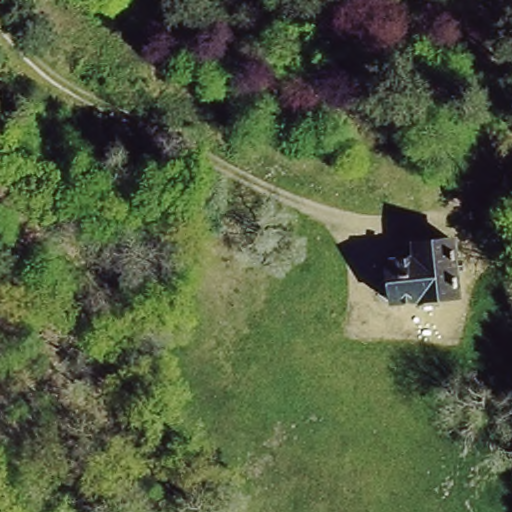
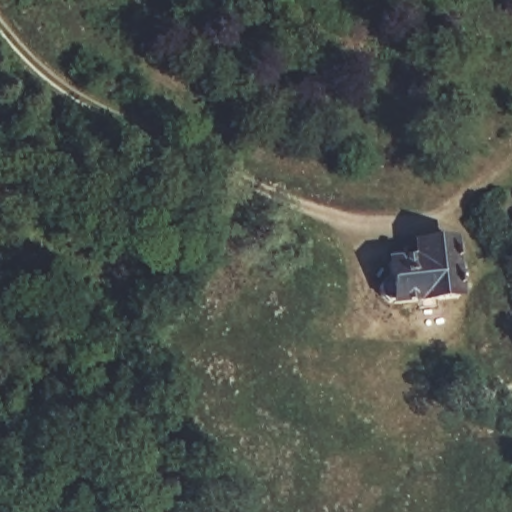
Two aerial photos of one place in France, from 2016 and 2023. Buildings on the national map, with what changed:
unchanged [(394,279),(391,267),(414,262),(416,243),(457,236),(463,298),(399,306),(398,297),(386,302),(381,282),(394,279)]

